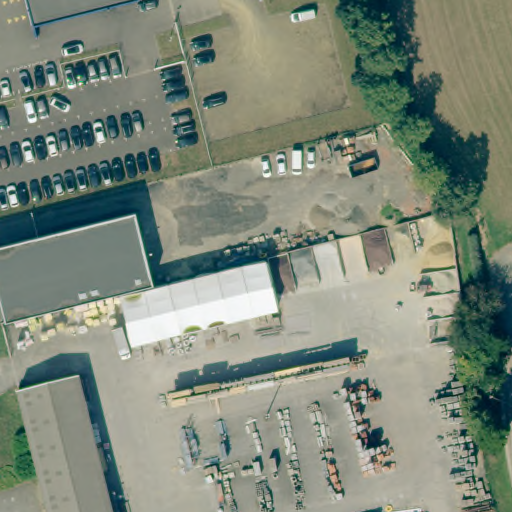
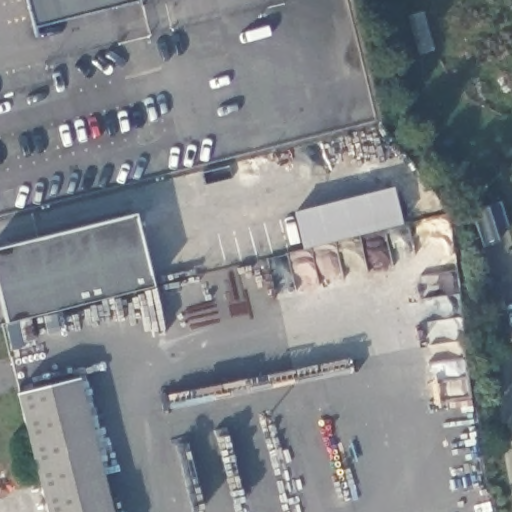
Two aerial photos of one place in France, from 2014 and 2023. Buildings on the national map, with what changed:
unchanged [(37,26),(29,0),(141,0),(37,26)]
new [(302,248),(293,211),(393,186),(402,222),(302,248)]
unchanged [(0,289),(0,247),(134,213),(152,284),(7,319),(0,289)]
unchanged [(17,391),(79,375),(93,430),(31,445),(17,391)]
unchanged [(93,430),(114,512),(48,512),(31,445),(93,430)]

